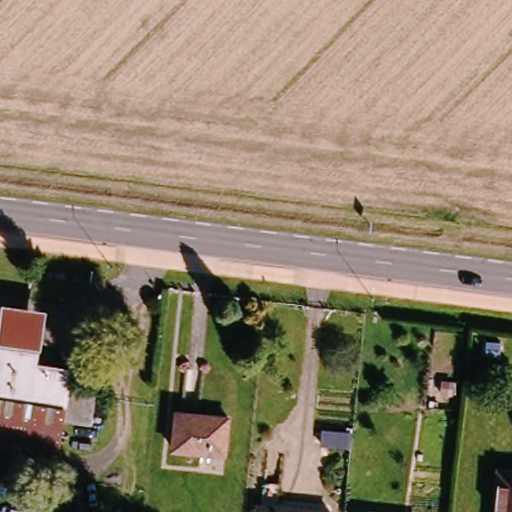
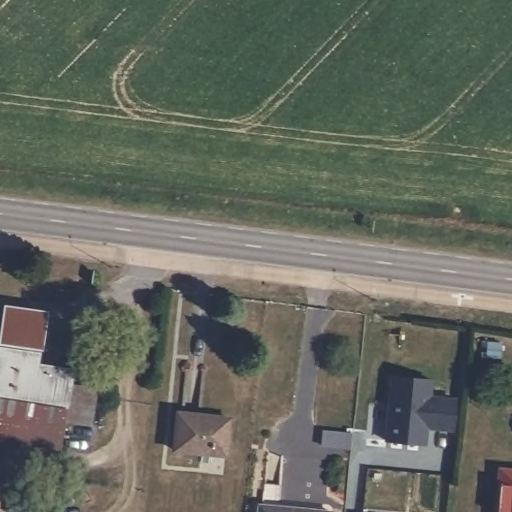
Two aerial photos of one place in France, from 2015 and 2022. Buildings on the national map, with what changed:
unchanged [(49,311),(43,350),(0,345),(0,337),(4,305),(49,311)]
unchanged [(38,356),(36,367),(72,373),(70,383),(96,388),(90,423),(65,420),(60,447),(0,438),(0,350),(38,356)]
new [(395,377),(461,384),(456,431),(436,429),(436,426),(429,425),(427,445),(388,441),(395,377)]
unchanged [(235,419),(231,456),(181,451),(184,413),(235,419)]
unchanged [(497,512),(502,466),(512,467),(512,512),(497,512)]
unchanged [(260,512),(261,505),(322,512),(260,512)]

